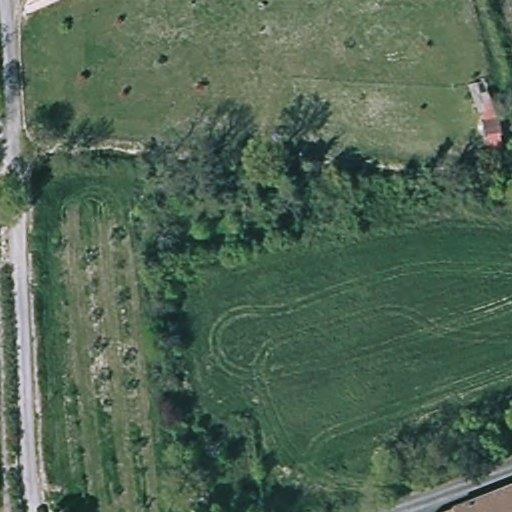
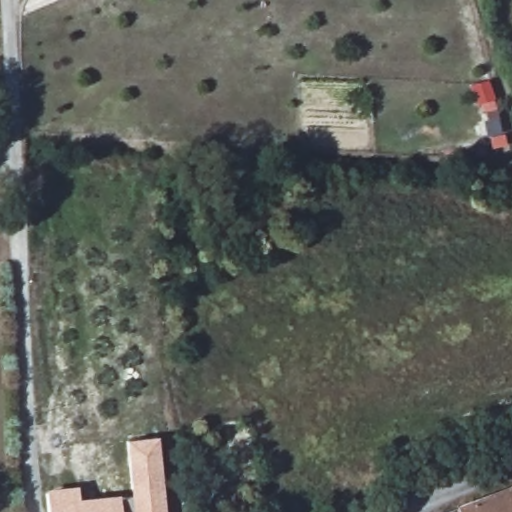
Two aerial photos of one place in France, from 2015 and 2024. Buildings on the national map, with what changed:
new [(78,485),(80,498),(120,494),(121,497),(132,495),(127,440),(158,436),(166,512),(49,512),(47,489),(78,485)]
unchanged [(459,507),(512,488),(512,512),(461,512),(459,507)]

